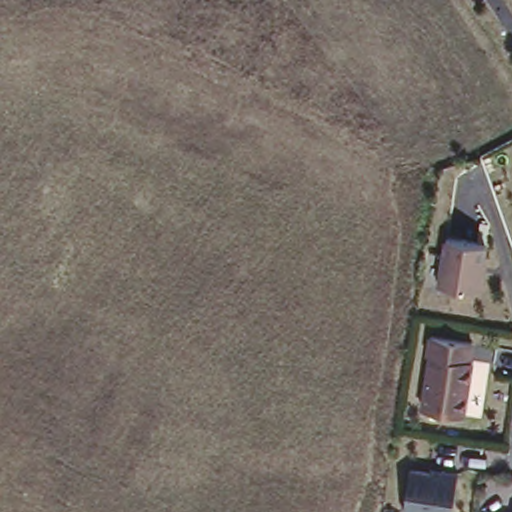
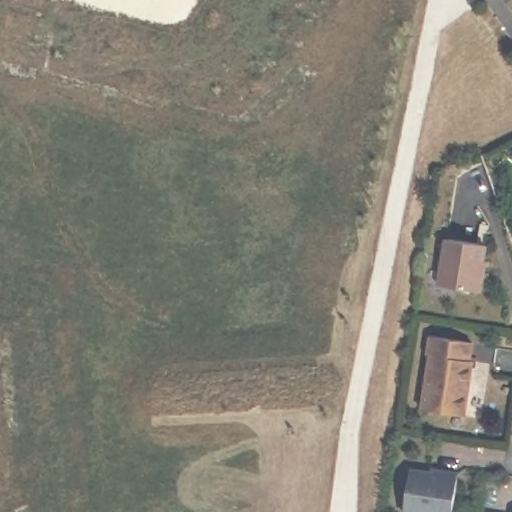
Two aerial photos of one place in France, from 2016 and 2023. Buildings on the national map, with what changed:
unchanged [(482,271),(485,271),(481,291),(440,285),(447,239),(487,245),(482,271)]
unchanged [(470,360),(472,360),(464,415),(422,408),(430,355),(428,354),(430,336),(472,342),(470,360)]
unchanged [(443,470),(459,472),(453,512),(404,512),(410,468),(442,473),(443,470)]
unchanged [(512,506),(512,512),(511,512),(511,506),(512,506)]

